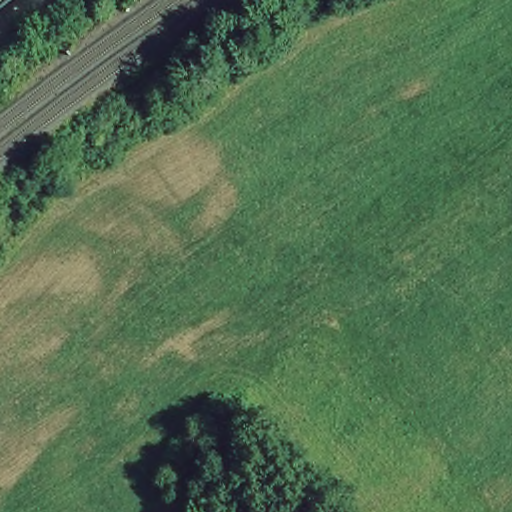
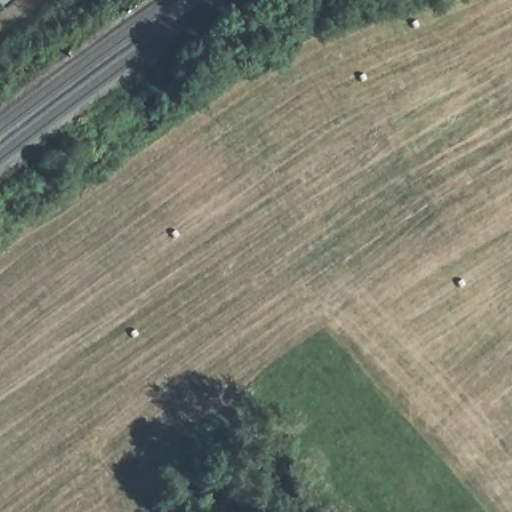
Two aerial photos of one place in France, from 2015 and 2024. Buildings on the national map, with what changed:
unchanged [(0,0),(12,0),(1,9),(0,8),(0,0)]

